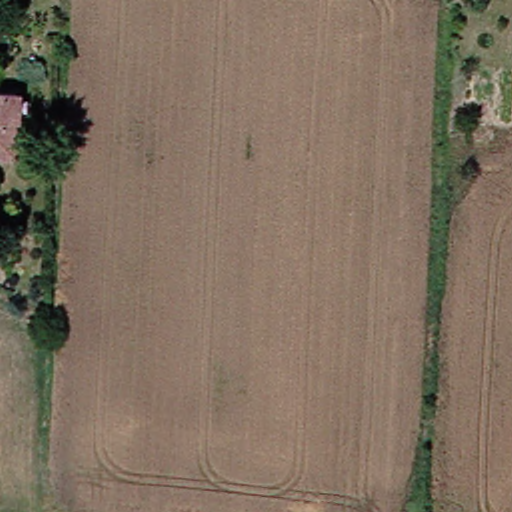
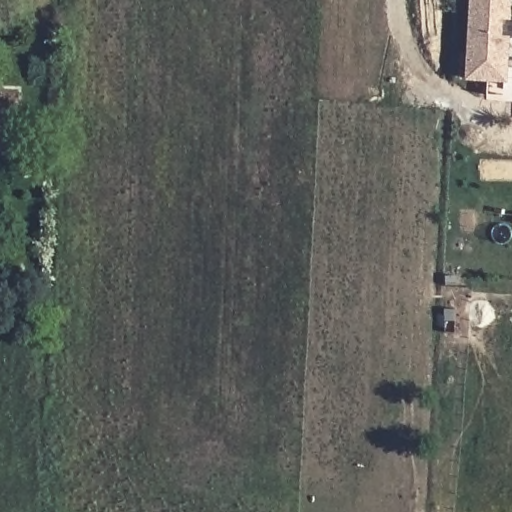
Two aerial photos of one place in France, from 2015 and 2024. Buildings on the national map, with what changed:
new [(500,37),(507,38),(505,80),(467,77),(471,0),(512,0),(512,18),(501,17),(500,37)]
unchanged [(19,154),(0,153),(0,92),(20,92),(19,154)]

